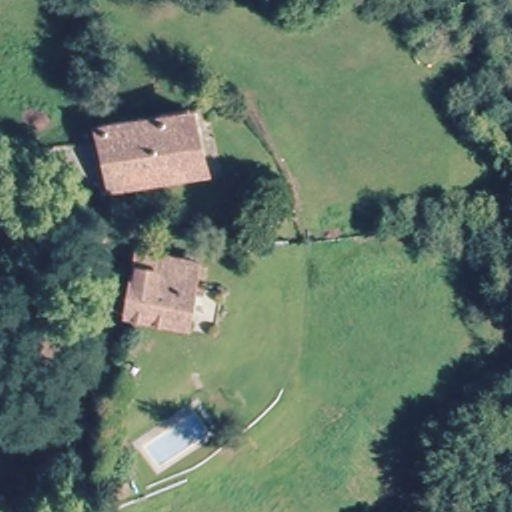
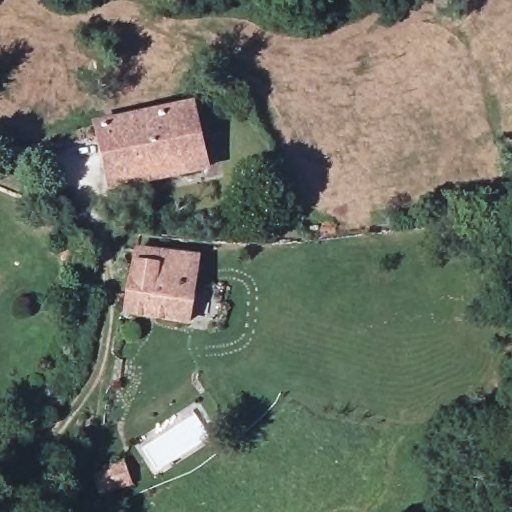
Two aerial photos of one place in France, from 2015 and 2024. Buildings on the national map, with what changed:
unchanged [(100,129),(192,110),(204,168),(175,175),(113,189),(103,143),(100,129)]
unchanged [(198,262),(193,319),(136,317),(138,256),(198,262)]

